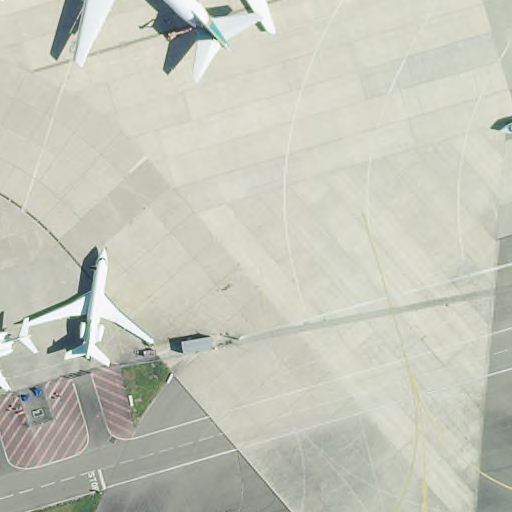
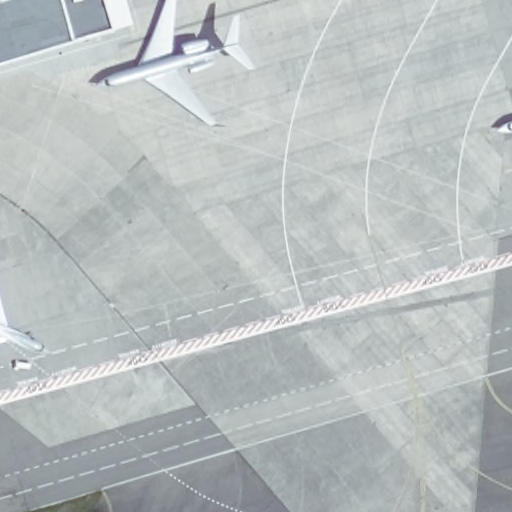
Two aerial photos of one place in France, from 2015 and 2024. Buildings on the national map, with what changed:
new [(91,35),(0,62),(0,0),(81,0),(91,35)]

